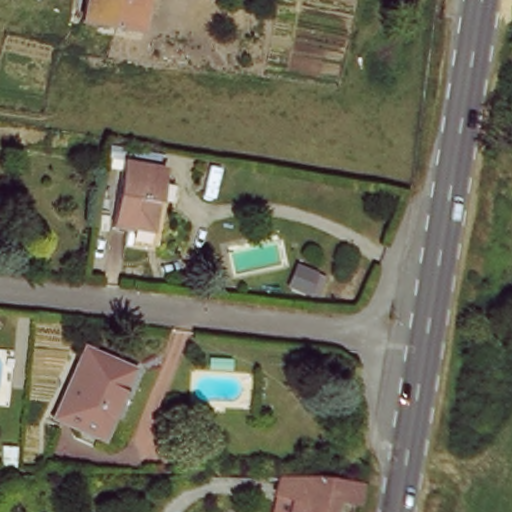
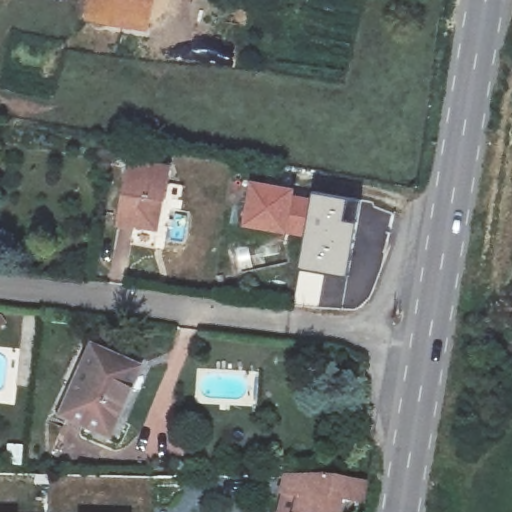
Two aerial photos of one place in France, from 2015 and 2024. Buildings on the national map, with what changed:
unchanged [(82,26),(87,0),(151,0),(144,36),(82,26)]
unchanged [(165,201),(159,200),(153,237),(116,231),(130,161),(170,170),(165,201)]
new [(302,269),(308,238),(289,234),(246,226),(253,180),(298,189),(316,194),(364,202),(358,225),(348,278),(302,269)]
unchanged [(60,418),(91,347),(111,355),(138,367),(133,379),(108,438),(60,418)]
unchanged [(271,487),(299,487),(294,512),(266,512),(271,487)]
unchanged [(368,491),(365,508),(365,512),(294,512),(299,487),(368,491)]

